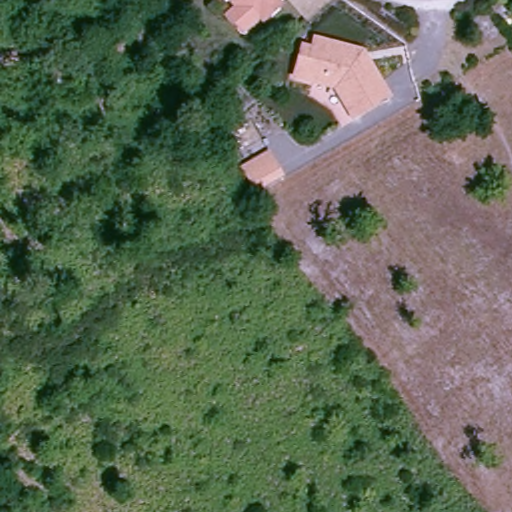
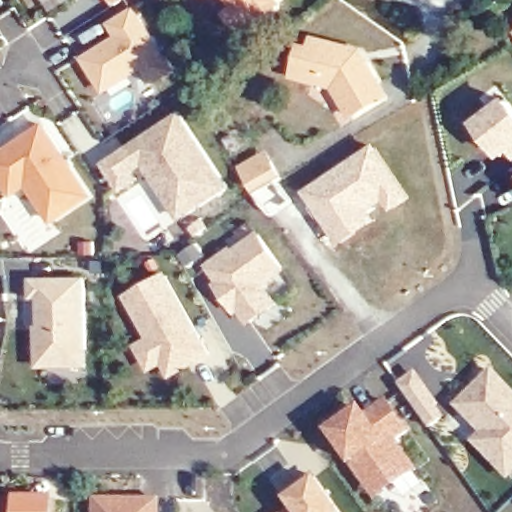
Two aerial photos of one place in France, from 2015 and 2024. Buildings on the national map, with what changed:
new [(115,6),(111,0),(124,0),(115,6)]
unchanged [(227,17),(236,9),(228,0),(279,0),(276,2),(275,10),(265,18),(258,18),(250,25),(241,33),(227,17)]
new [(154,86),(143,71),(105,95),(81,58),(115,35),(108,23),(137,6),(177,71),(154,86)]
demolished [(356,101),(338,70),(297,60),(305,30),(315,33),(317,23),(365,35),(391,80),(356,101)]
new [(350,119),(331,87),(290,74),(300,42),(310,44),(312,35),(363,48),(390,96),(350,119)]
new [(503,160),(475,123),(508,96),(512,100),(512,154),(503,160)]
new [(180,221),(144,167),(136,171),(121,150),(181,111),(231,187),(180,221)]
new [(28,188),(14,197),(0,178),(0,152),(46,121),(95,196),(54,224),(28,188)]
new [(376,143),(413,197),(392,211),(385,200),(372,209),(379,219),(341,246),(303,191),(376,143)]
unchanged [(285,177),(258,192),(248,178),(244,172),(270,153),(274,160),(284,177),(285,177)]
new [(288,271),(267,285),(280,303),(250,326),(240,313),(235,315),(215,283),(219,280),(206,266),(232,246),(235,249),(260,230),(288,271)]
new [(212,355),(171,378),(162,365),(150,372),(134,345),(147,337),(125,296),(167,271),(212,355)]
new [(89,367),(37,367),(36,325),(39,325),(38,299),(31,300),(31,276),(87,276),(89,367)]
new [(460,408),(473,395),(478,391),(495,374),(512,392),(512,479),(477,444),(483,439),(486,436),(460,408)]
new [(417,376),(438,404),(434,407),(442,419),(430,428),(401,387),(417,376)]
new [(413,431),(400,440),(420,469),(376,500),(327,431),(364,405),(389,397),(413,431)]
new [(283,512),(290,505),(287,500),(319,476),(344,512),(283,512)]
new [(2,512),(2,498),(58,497),(58,512),(2,512)]
new [(95,512),(95,497),(162,497),(162,512),(95,512)]

